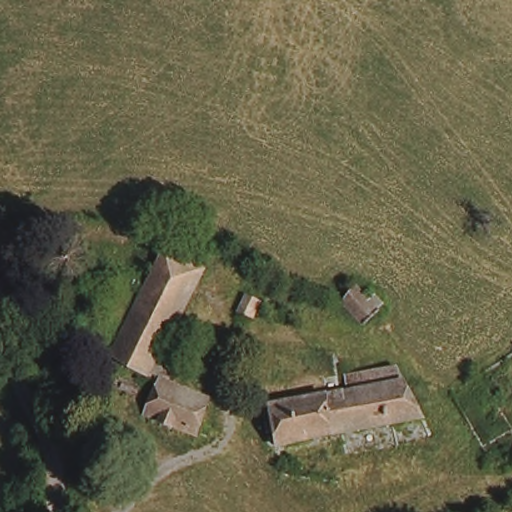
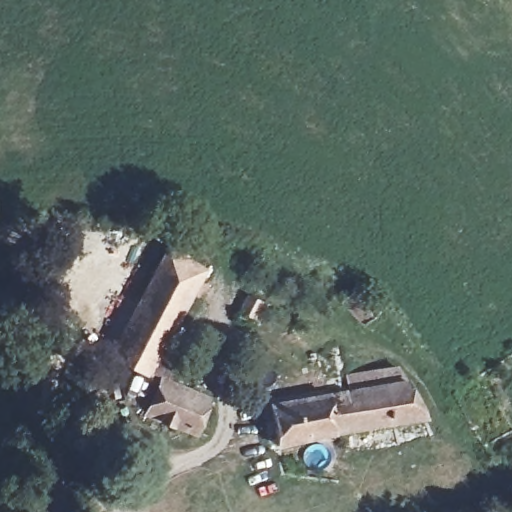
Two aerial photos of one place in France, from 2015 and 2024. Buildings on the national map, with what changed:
unchanged [(197,266),(188,287),(177,306),(164,336),(149,373),(121,361),(154,287),(146,283),(161,250),(197,266)]
unchanged [(328,311),(302,285),(316,271),(342,297),(328,311)]
unchanged [(237,317),(233,314),(240,296),(256,301),(249,322),(237,317)]
unchanged [(402,416),(409,421),(410,431),(395,435),(391,423),(381,424),(277,450),(272,418),(283,415),(282,404),(341,389),(339,382),(388,370),(402,416)]
unchanged [(143,419),(159,378),(211,397),(193,436),(143,419)]

